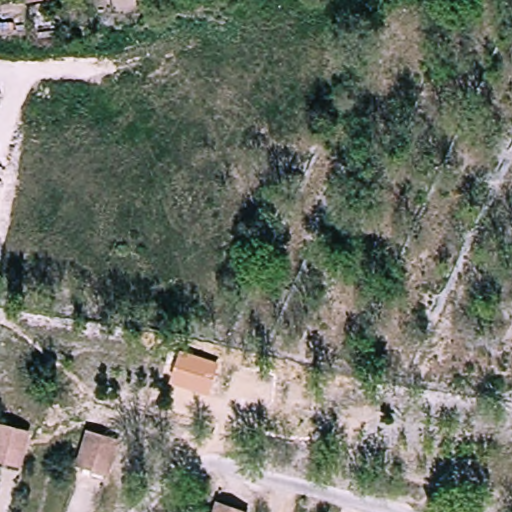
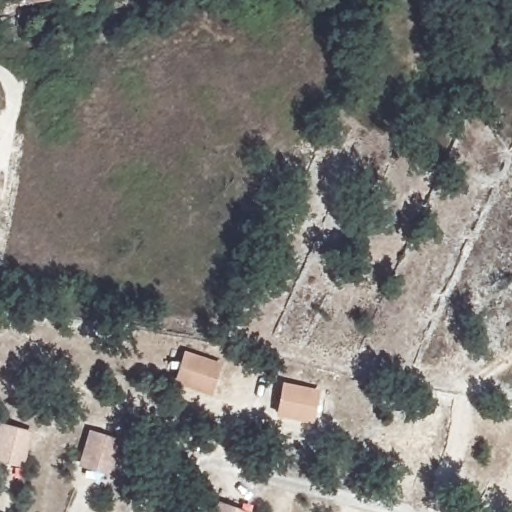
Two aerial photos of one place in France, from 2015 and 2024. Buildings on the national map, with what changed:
unchanged [(184,352),(221,364),(212,396),(174,384),(184,352)]
new [(319,391),(313,423),(276,417),(282,382),(319,391)]
unchanged [(38,423),(28,470),(0,464),(0,416),(38,423)]
unchanged [(122,441),(112,477),(79,467),(90,431),(122,441)]
unchanged [(248,512),(212,512),(216,497),(249,510),(248,512)]

